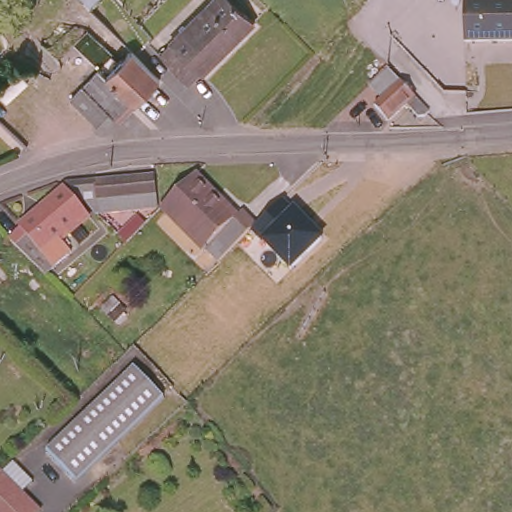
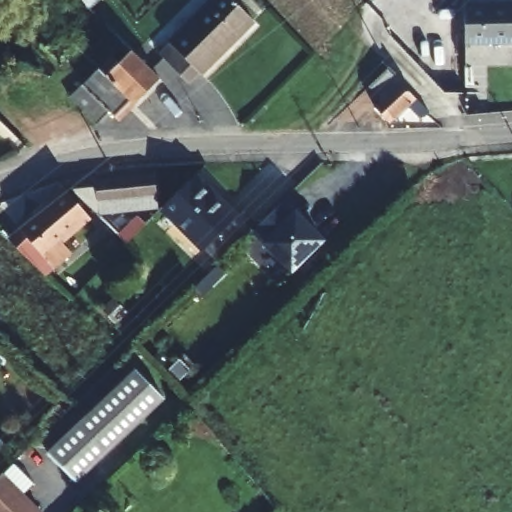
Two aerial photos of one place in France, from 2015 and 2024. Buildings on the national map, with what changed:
unchanged [(77,0),(106,0),(87,13),(77,0)]
unchanged [(250,21),(200,74),(197,71),(185,84),(157,56),(211,0),(229,0),(250,21)]
unchanged [(512,4),(512,42),(460,45),(458,8),(512,4)]
unchanged [(121,39),(113,46),(103,37),(111,29),(121,39)]
unchanged [(74,96),(82,88),(95,75),(92,71),(107,57),(116,65),(132,50),(147,66),(157,75),(112,117),(103,125),(74,96)]
unchanged [(420,127),(407,113),(388,127),(375,115),(383,108),(369,92),(390,75),(403,90),(432,121),(420,127)]
unchanged [(155,207),(97,213),(69,183),(153,175),(155,207)]
unchanged [(220,263),(165,204),(192,175),(237,222),(245,214),(257,226),(220,263)]
unchanged [(90,216),(46,254),(53,265),(43,273),(7,237),(66,190),(90,216)]
unchanged [(262,242),(260,244),(250,233),(257,226),(282,200),(292,210),(293,212),(296,208),(325,239),(292,273),(262,242)]
unchanged [(165,398),(75,487),(45,451),(133,368),(165,398)]
unchanged [(40,512),(0,512),(0,472),(0,471),(42,510),(40,512)]

